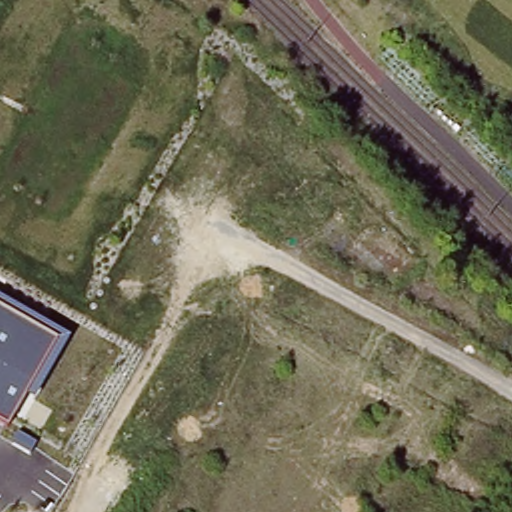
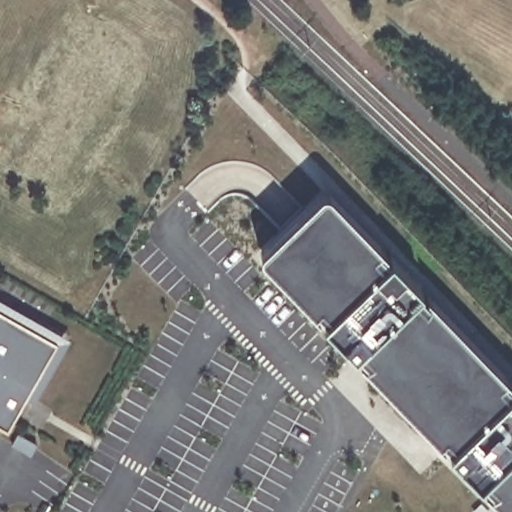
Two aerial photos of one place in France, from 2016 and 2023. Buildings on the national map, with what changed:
new [(259,249),(325,185),(512,379),(512,512),(259,249)]
unchanged [(0,297),(70,336),(34,400),(25,396),(7,428),(0,425),(0,297)]

